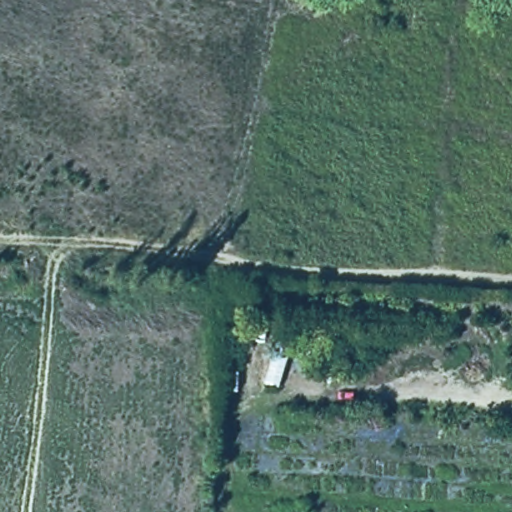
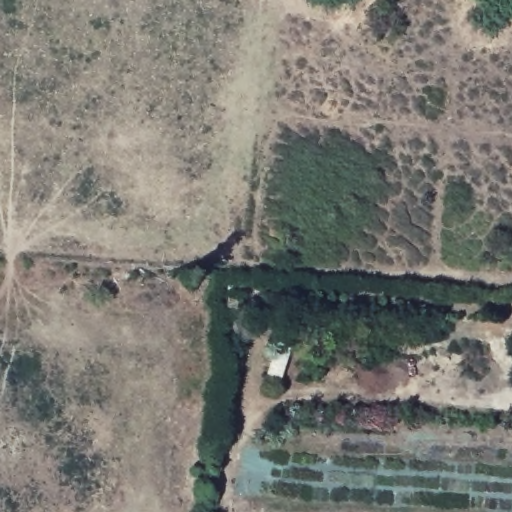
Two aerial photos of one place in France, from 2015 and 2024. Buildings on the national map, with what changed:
unchanged [(247,289),(243,322),(222,319),(225,287),(247,289)]

